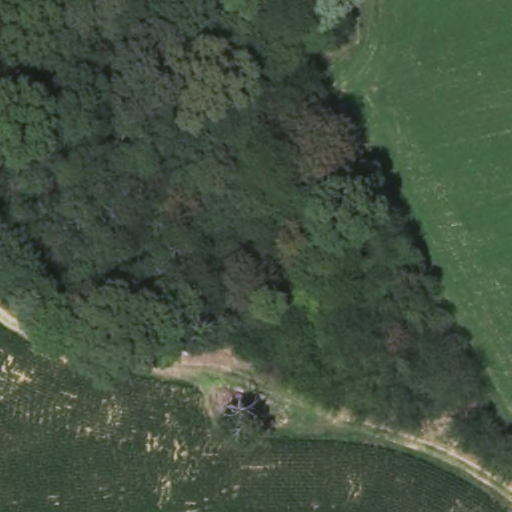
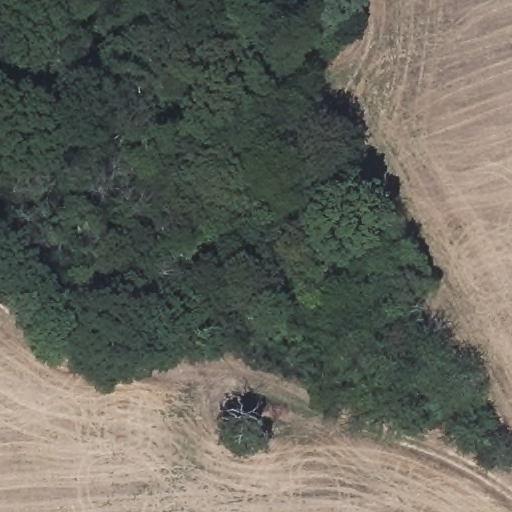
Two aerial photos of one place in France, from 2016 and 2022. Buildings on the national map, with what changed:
[]

